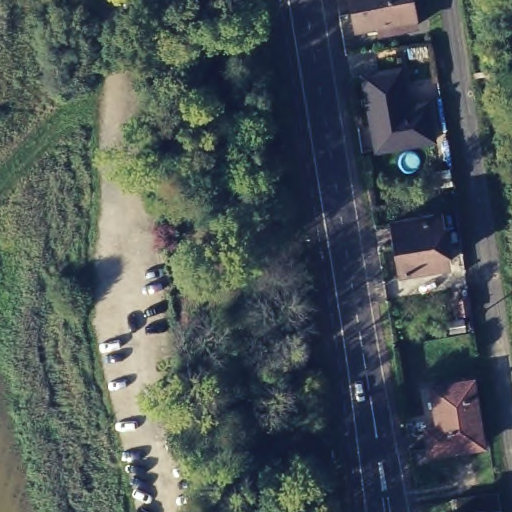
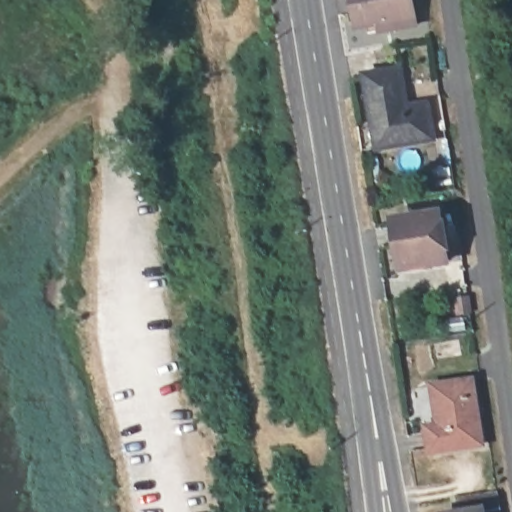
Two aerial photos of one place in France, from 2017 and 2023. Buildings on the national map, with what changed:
unchanged [(377,27),(375,20),(356,22),(352,0),(407,0),(410,22),(377,27)]
unchanged [(372,147),(362,79),(393,73),(400,108),(420,108),(424,140),(372,147)]
unchanged [(401,264),(394,219),(437,212),(445,258),(401,264)]
unchanged [(455,312),(454,298),(467,297),(470,312),(455,312)]
unchanged [(435,447),(432,424),(445,421),(440,385),(477,380),(485,439),(435,447)]
unchanged [(491,512),(452,512),(450,500),(505,491),(507,505),(490,506),(491,512)]

